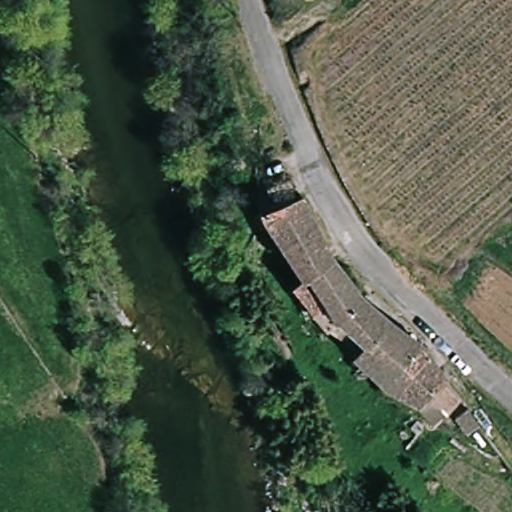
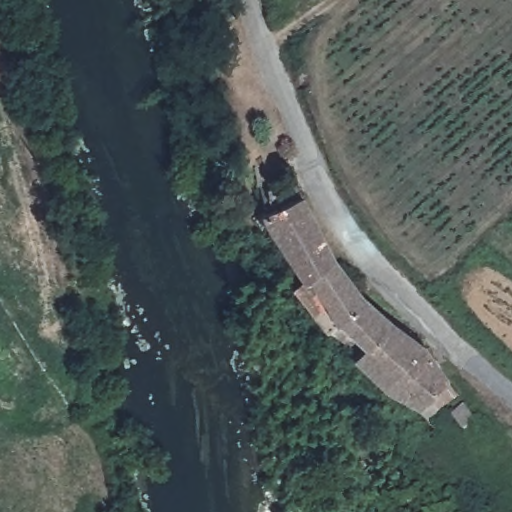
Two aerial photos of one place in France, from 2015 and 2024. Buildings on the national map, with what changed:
unchanged [(295,192),(330,245),(294,268),(257,216),(266,211),(295,192)]
unchanged [(294,268),(330,245),(355,281),(422,346),(458,399),(426,420),(410,403),(370,391),(342,352),(350,346),(290,271),(294,268)]
unchanged [(473,437),(461,419),(475,408),(489,427),(473,437)]

